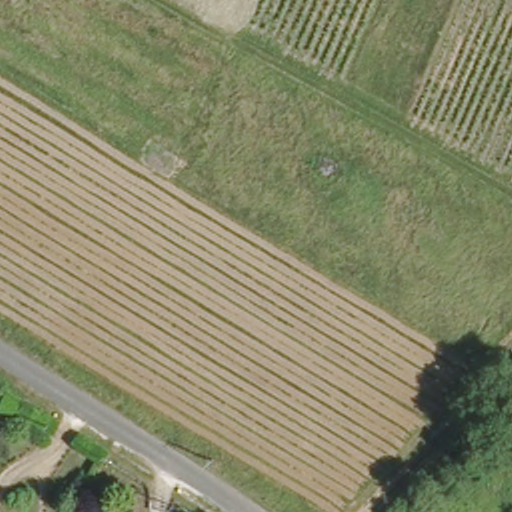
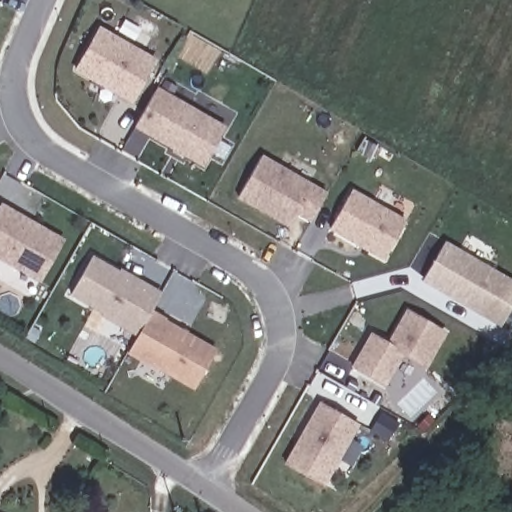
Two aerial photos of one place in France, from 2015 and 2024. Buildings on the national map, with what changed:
new [(76,69),(101,28),(156,61),(131,102),(105,86),(102,89),(90,82),(92,79),(76,69)]
new [(139,123),(160,87),(227,127),(205,163),(139,123)]
new [(330,194),(315,220),(301,213),(294,226),(242,195),(266,155),(330,194)]
new [(410,222),(387,259),(334,227),(356,191),(410,222)]
new [(0,258),(0,208),(1,205),(62,241),(38,281),(0,258)]
new [(512,281),(512,310),(503,325),(470,306),(470,301),(464,298),(459,299),(428,281),(450,244),(512,281)]
new [(160,297),(139,333),(71,293),(92,256),(160,297)]
new [(445,335),(425,369),(403,355),(385,387),(354,368),(373,337),(389,346),(409,313),(445,335)]
new [(223,353),(200,390),(135,351),(157,314),(223,353)]
new [(321,487),(285,465),(321,404),(357,426),(321,487)]

